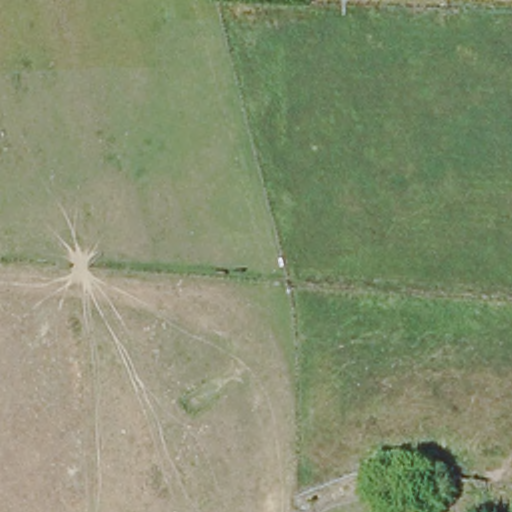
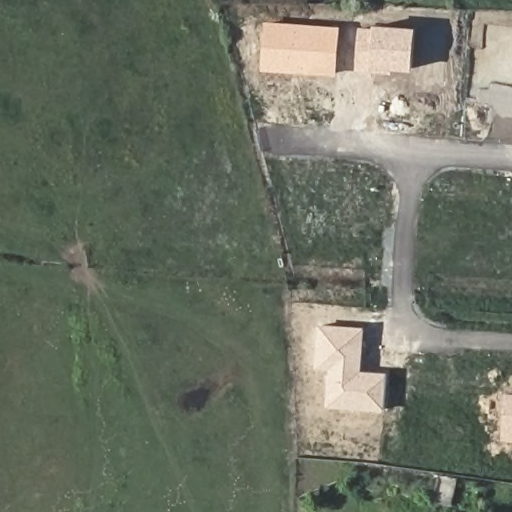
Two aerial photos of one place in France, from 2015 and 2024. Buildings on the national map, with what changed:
new [(265,21),(341,26),(338,74),(263,70),(265,21)]
new [(360,26),(375,28),(375,25),(416,28),(412,70),(392,69),(392,74),(357,70),(360,26)]
new [(329,369),(316,368),(318,325),(364,328),(362,371),(387,373),(385,411),(328,407),(329,369)]
new [(505,393),(512,393),(512,441),(502,440),(505,393)]

